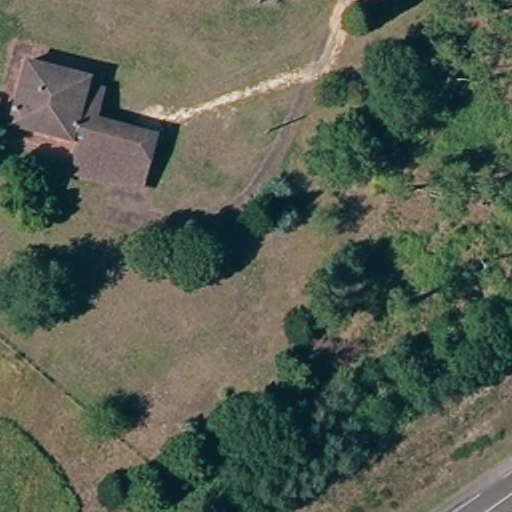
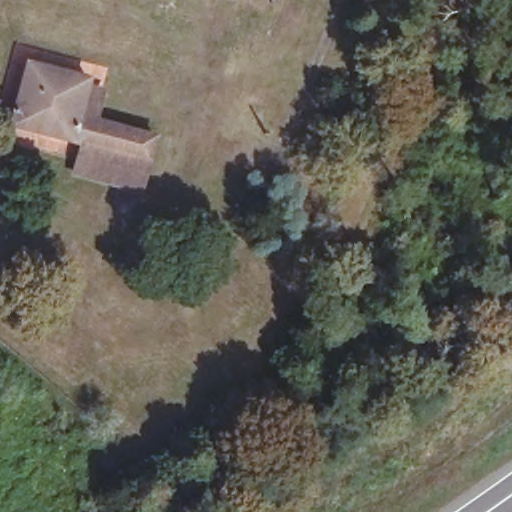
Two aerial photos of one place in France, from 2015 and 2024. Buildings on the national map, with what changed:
unchanged [(8,128),(10,118),(17,71),(80,83),(76,118),(149,136),(144,158),(77,144),(8,128)]
unchanged [(144,158),(137,190),(72,176),(77,144),(144,158)]

